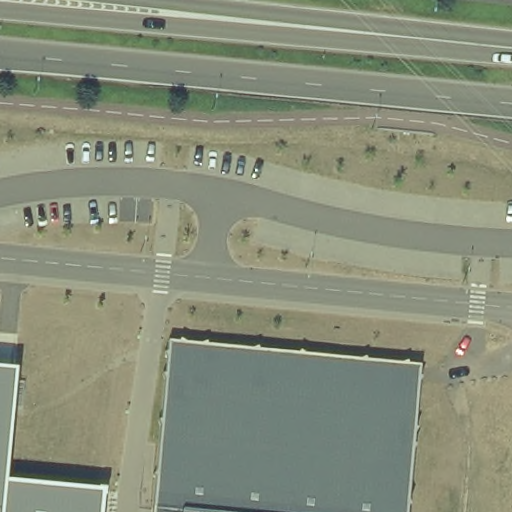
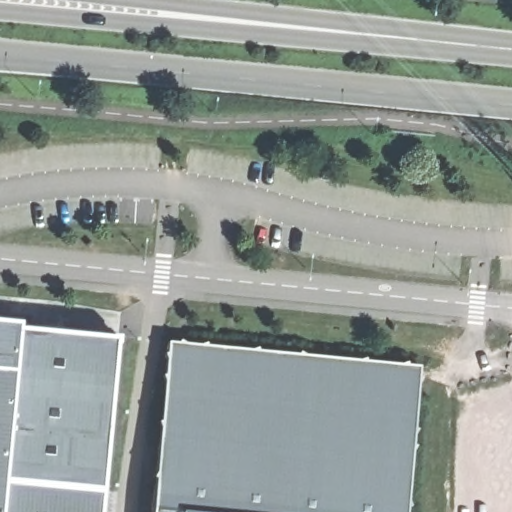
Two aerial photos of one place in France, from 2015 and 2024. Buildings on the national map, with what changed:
new [(103,490),(7,481),(17,369),(0,368),(0,327),(122,338),(103,490)]
unchanged [(170,341),(420,366),(405,512),(153,512),(153,508),(170,341)]
unchanged [(4,512),(0,512),(0,368),(17,369),(4,512)]
unchanged [(103,490),(102,512),(4,512),(7,481),(103,490)]

